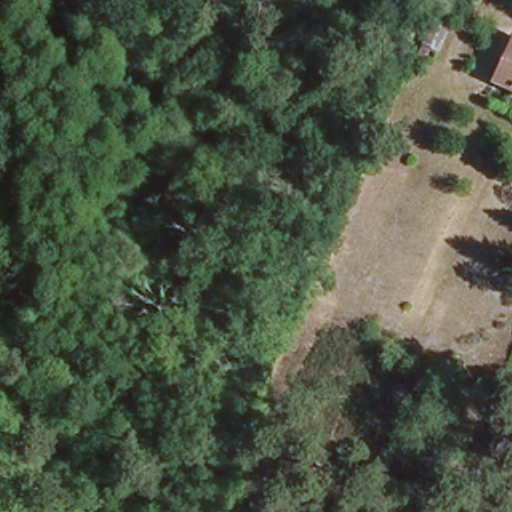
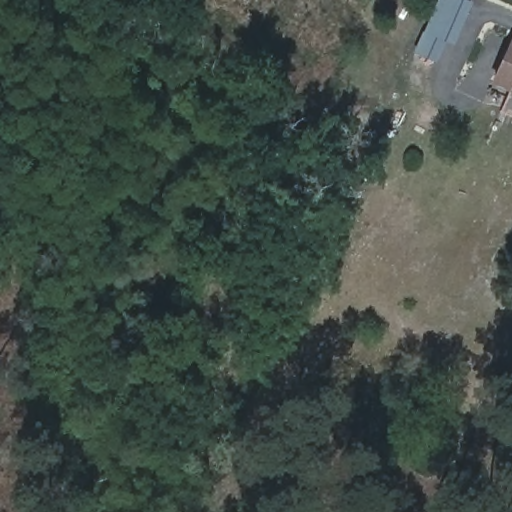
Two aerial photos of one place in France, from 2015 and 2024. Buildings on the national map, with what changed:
new [(438,0),(468,0),(471,2),(453,43),(445,40),(436,62),(415,53),(438,0)]
unchanged [(512,40),(512,86),(495,81),(512,40)]

